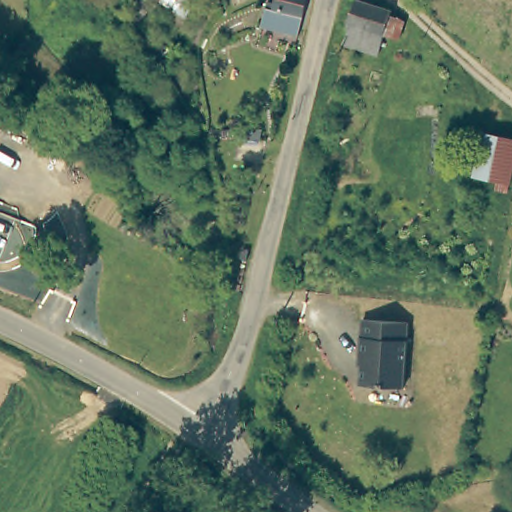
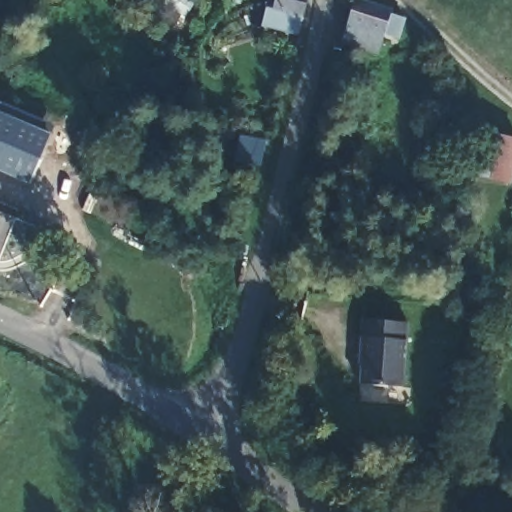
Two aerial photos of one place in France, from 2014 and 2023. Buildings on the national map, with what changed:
unchanged [(274,9),(275,0),(307,0),(302,17),(298,35),(262,26),(267,7),(274,9)]
unchanged [(384,34),(377,54),(341,42),(355,0),(358,0),(391,11),(389,16),(404,20),(403,24),(399,39),(384,34)]
new [(0,101),(55,125),(51,134),(31,182),(0,171),(0,101)]
unchanged [(510,183),(474,175),(479,154),(463,150),(468,129),(483,132),(512,139),(512,172),(510,183)]
unchanged [(409,320),(406,386),(361,383),(362,318),(409,320)]

